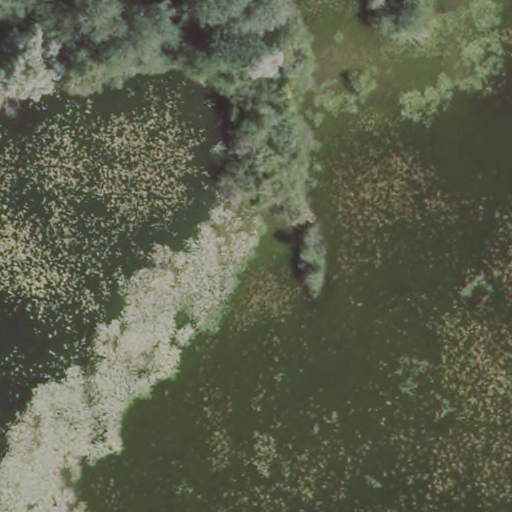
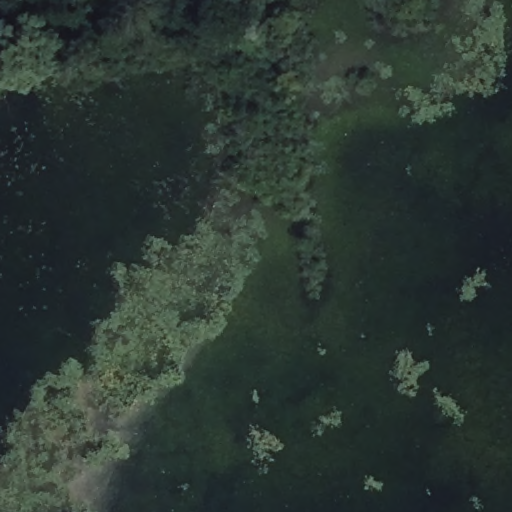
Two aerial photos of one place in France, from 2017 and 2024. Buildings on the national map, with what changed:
unchanged [(0,47),(0,24),(15,22),(17,44),(20,44),(21,54),(19,55),(20,64),(2,66),(0,47)]

